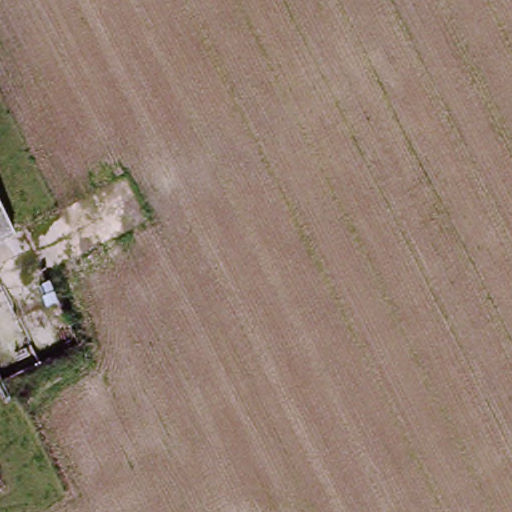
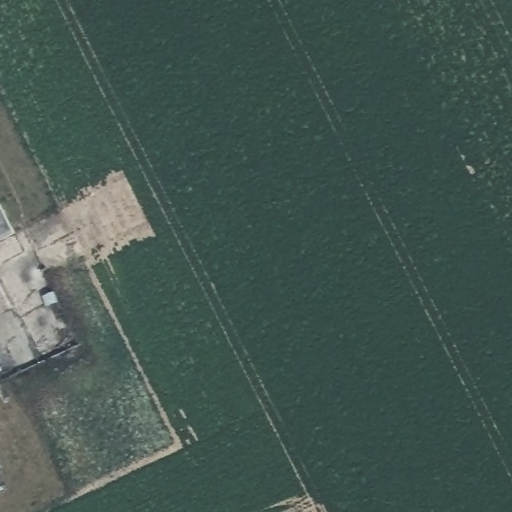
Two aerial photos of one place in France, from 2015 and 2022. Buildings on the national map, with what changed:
unchanged [(0,243),(0,208),(15,236),(0,243)]
unchanged [(0,493),(0,478),(6,490),(0,493)]

